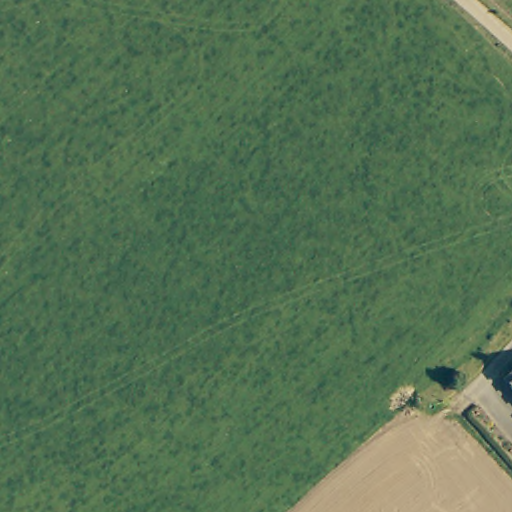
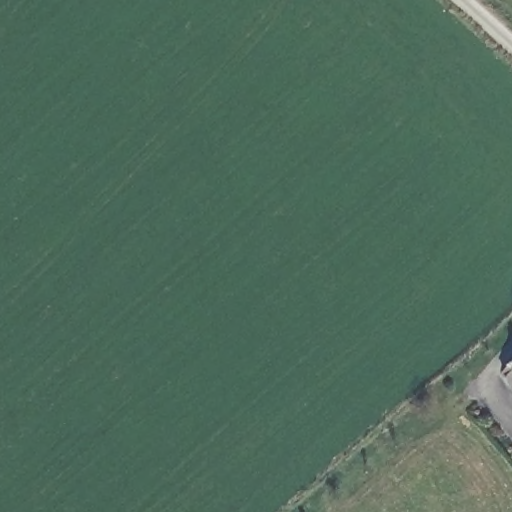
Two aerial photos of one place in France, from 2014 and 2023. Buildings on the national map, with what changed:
unchanged [(512,367),(512,384),(503,376),(512,367)]

